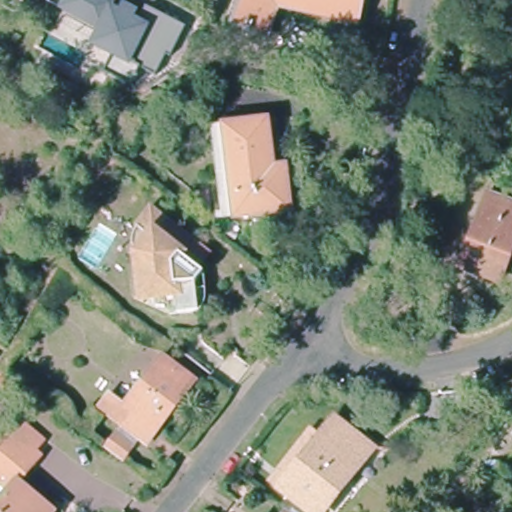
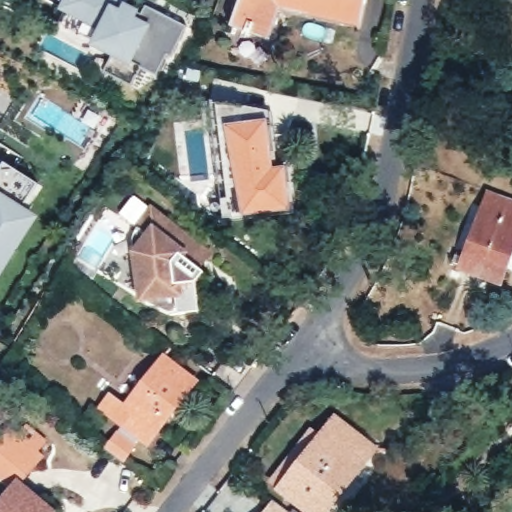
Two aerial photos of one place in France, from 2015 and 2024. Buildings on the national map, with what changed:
unchanged [(146,5),(186,27),(170,56),(166,55),(155,75),(142,68),(138,75),(140,76),(133,85),(105,70),(113,56),(91,45),(98,30),(58,10),(63,0),(124,0),(143,10),(146,5)]
unchanged [(233,15),(238,0),(365,0),(360,20),(287,3),(285,8),(273,5),(266,26),(263,33),(231,21),(233,15)]
unchanged [(297,210),(234,217),(221,129),(274,121),(280,169),(293,169),(297,210)]
new [(38,184),(24,206),(40,217),(0,278),(0,169),(4,164),(38,184)]
unchanged [(464,264),(490,195),(512,202),(512,259),(505,278),(464,264)]
unchanged [(202,294),(201,297),(209,297),(212,308),(209,315),(203,317),(185,321),(179,299),(149,303),(142,263),(135,257),(134,246),(143,237),(156,220),(203,257),(213,265),(204,276),(210,282),(202,294)]
unchanged [(131,426),(139,418),(131,410),(171,360),(202,383),(154,443),(131,426)]
unchanged [(289,492),(276,481),(328,413),(341,423),(289,492)]
unchanged [(377,451),(330,512),(316,512),(289,492),(341,423),(377,451)]
unchanged [(7,495),(0,490),(0,444),(8,435),(16,441),(24,429),(40,442),(31,453),(36,457),(15,485),(44,508),(49,512),(0,512),(0,503),(7,495)]
unchanged [(125,437),(140,450),(130,465),(113,452),(125,437)]

